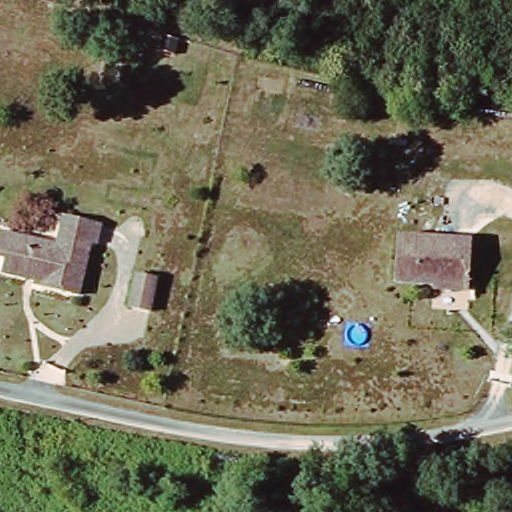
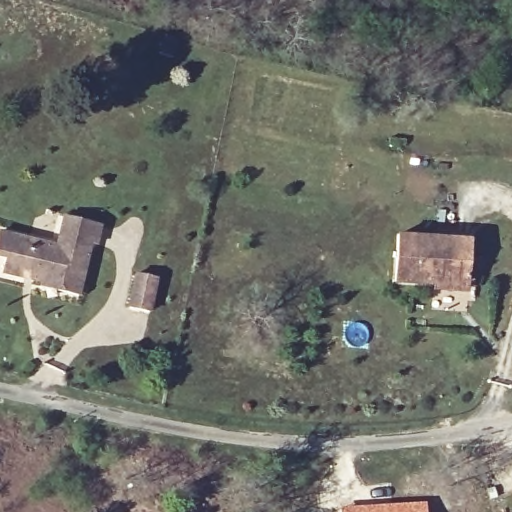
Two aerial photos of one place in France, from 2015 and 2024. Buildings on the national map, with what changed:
unchanged [(41,282),(1,273),(5,258),(0,257),(0,234),(58,247),(66,219),(103,227),(97,247),(91,245),(76,297),(56,292),(39,287),(41,282)]
unchanged [(397,237),(471,242),(465,288),(391,283),(397,237)]
unchanged [(139,320),(119,315),(128,282),(148,286),(139,320)]
new [(340,508),(424,503),(425,512),(340,512),(340,508)]

